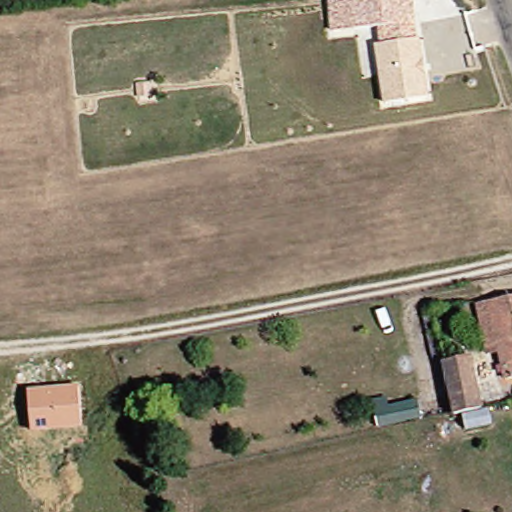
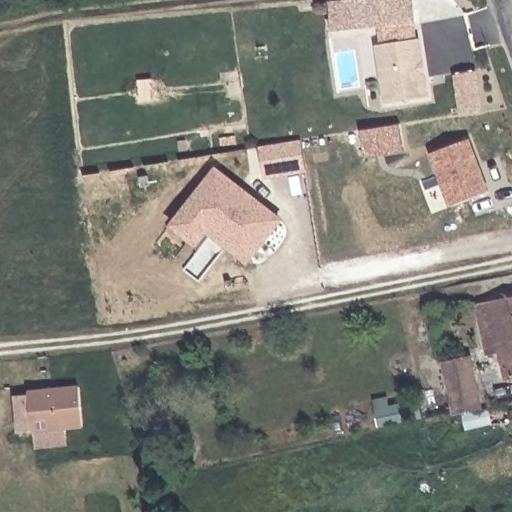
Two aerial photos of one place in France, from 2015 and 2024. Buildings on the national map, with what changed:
unchanged [(354,0),(413,0),(416,39),(422,38),(429,98),(383,105),(375,45),(380,44),(378,27),(330,32),(327,3),(354,0)]
new [(458,74),(478,71),(483,111),(463,113),(458,74)]
new [(482,170),(490,191),(451,206),(431,151),(470,138),(480,164),(482,170)]
new [(280,217),(251,252),(190,200),(220,165),(280,217)]
new [(251,252),(247,257),(208,224),(196,237),(174,218),(190,200),(251,252)]
unchanged [(492,349),(481,351),(469,302),(482,299),(512,293),(512,374),(500,377),(492,349)]
unchanged [(447,414),(435,360),(465,355),(476,407),(447,414)]
unchanged [(82,428),(32,434),(29,390),(80,386),(82,428)]

